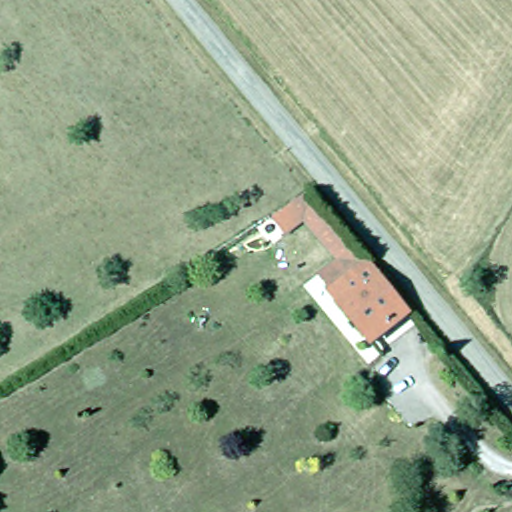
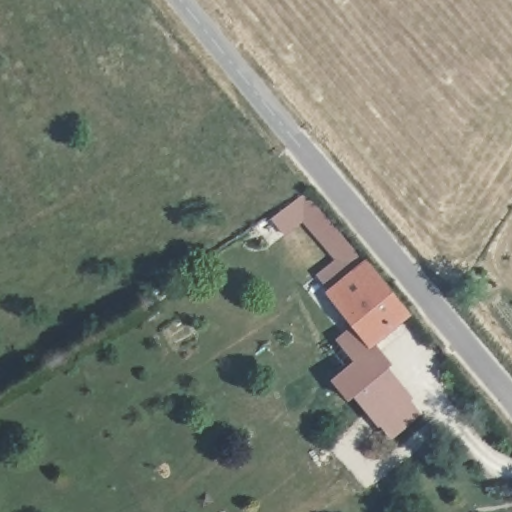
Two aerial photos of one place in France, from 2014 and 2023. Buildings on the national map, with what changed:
unchanged [(323,275),(341,261),(305,217),(287,229),(274,215),(296,200),(302,208),(317,197),(370,261),(335,291),(323,275)]
unchanged [(412,312),(375,341),(335,291),(370,261),(412,312)]
new [(380,424),(378,425),(352,393),(345,399),(329,379),(353,359),(335,338),(358,320),(375,341),(392,363),(388,366),(414,397),(412,398),(425,413),(393,439),(380,424)]

